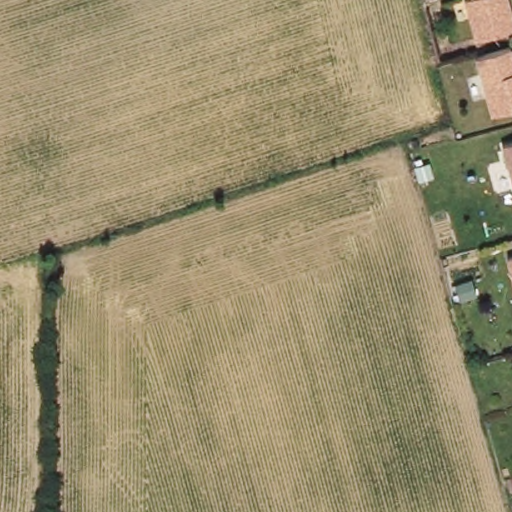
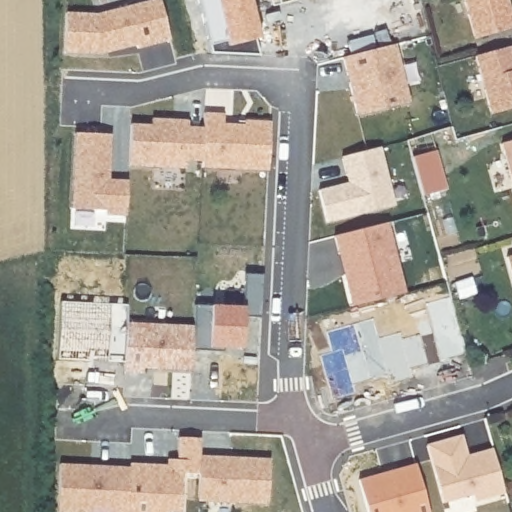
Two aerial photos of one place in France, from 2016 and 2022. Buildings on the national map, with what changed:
new [(137,46),(136,43),(104,52),(66,50),(67,12),(97,14),(152,0),(160,0),(170,40),(137,46)]
unchanged [(512,17),(512,28),(475,39),(464,0),(507,0),(512,17)]
new [(411,102),(358,116),(343,57),(396,42),(411,102)]
unchanged [(512,55),(512,108),(491,114),(475,56),(510,46),(512,55)]
new [(202,162),(203,129),(204,114),(224,115),(224,125),(244,125),(244,121),(271,122),(269,171),(202,168),(202,162)]
new [(152,126),(152,119),(172,120),(189,121),(188,128),(203,129),(202,162),(187,161),(186,169),(129,166),(131,125),(152,126)]
new [(109,179),(127,180),(126,215),(106,216),(106,210),(72,206),(75,132),(111,134),(109,179)]
unchanged [(512,184),(501,144),(512,141),(512,184)]
new [(394,205),(328,221),(320,190),(340,185),(340,187),(356,184),(352,175),(348,175),(342,156),(381,147),(394,205)]
new [(435,149),(445,187),(421,195),(411,156),(435,149)]
new [(335,236),(388,223),(406,293),(352,307),(344,276),(339,255),(335,236)]
unchanged [(512,256),(512,279),(506,258),(512,256)]
new [(213,352),(193,351),(194,327),(195,306),(244,308),(245,275),(264,276),(262,319),(245,318),(243,350),(225,348),(225,353),(213,352)]
new [(127,324),(194,327),(192,372),(143,370),(143,375),(125,373),(127,324)]
new [(468,457),(475,455),(493,450),(506,495),(476,503),(473,496),(443,505),(427,446),(462,437),(468,457)]
new [(131,465),(162,466),(168,466),(168,460),(178,460),(179,438),(202,439),(201,456),(200,475),(183,474),(181,512),(128,512),(130,468),(131,465)]
new [(200,475),(201,456),(271,460),(268,505),(199,502),(200,475)]
new [(112,467),(130,468),(128,512),(58,512),(60,465),(92,466),(112,467)]
new [(417,465),(430,512),(368,512),(359,481),(392,471),(398,470),(417,465)]

